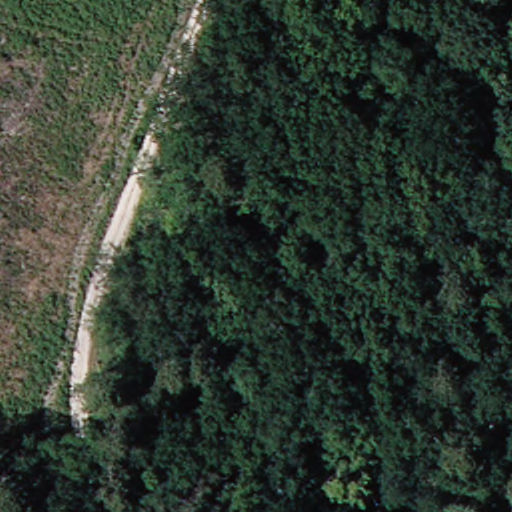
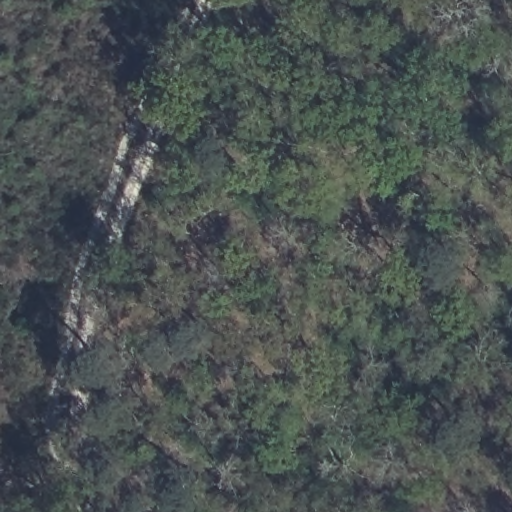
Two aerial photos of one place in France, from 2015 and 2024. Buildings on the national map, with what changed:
[]

